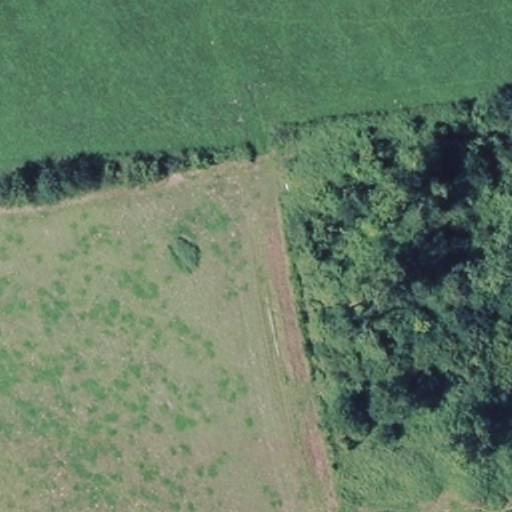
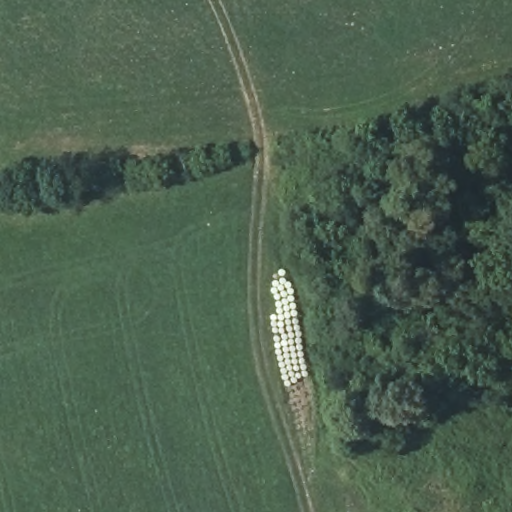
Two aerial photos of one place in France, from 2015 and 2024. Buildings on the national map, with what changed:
[]

